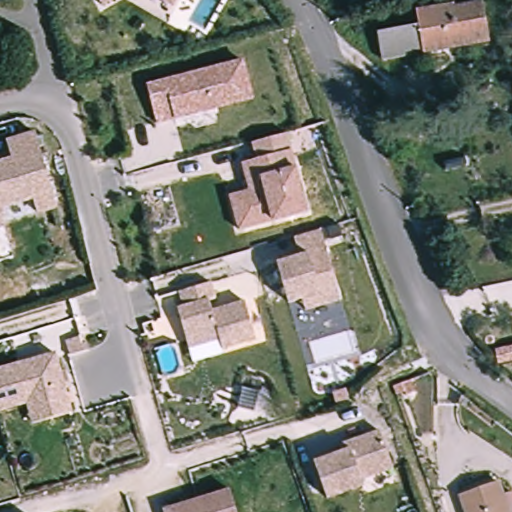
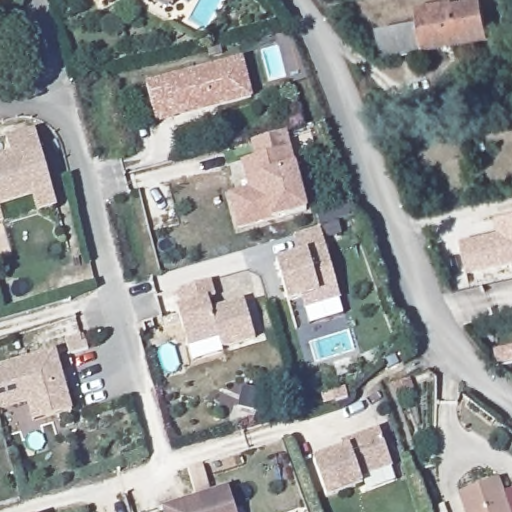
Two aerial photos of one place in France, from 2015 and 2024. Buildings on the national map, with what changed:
unchanged [(99,5),(97,0),(110,0),(99,5)]
unchanged [(174,7),(162,0),(179,0),(174,7)]
unchanged [(383,54),(379,27),(411,22),(411,9),(451,5),(451,10),(479,7),(485,42),(383,54)]
unchanged [(161,123),(151,86),(244,60),(255,97),(194,114),(180,117),(161,123)]
unchanged [(253,139),(286,130),(308,209),(241,227),(235,202),(232,193),(251,188),(243,160),(258,156),(253,139)]
unchanged [(11,152),(39,143),(63,217),(43,223),(38,208),(5,219),(9,233),(0,236),(0,175),(17,170),(11,152)]
new [(468,274),(461,241),(499,233),(496,218),(512,215),(512,266),(468,274)]
unchanged [(324,226),(344,296),(326,302),(323,291),(292,300),(280,259),(303,252),(298,234),(324,226)]
unchanged [(216,296),(210,298),(213,309),(246,299),(258,337),(224,347),(221,337),(191,345),(179,306),(186,304),(181,289),(212,280),(216,296)]
unchanged [(0,407),(0,366),(58,349),(74,408),(48,416),(36,419),(30,399),(0,407)]
unchanged [(394,467),(363,478),(364,484),(329,497),(316,461),(346,451),(344,443),(349,442),(381,430),(394,467)]
unchanged [(230,487),(238,512),(167,512),(165,507),(230,487)]
unchanged [(494,490),(501,506),(511,502),(512,506),(512,512),(460,512),(458,506),(494,490)]

